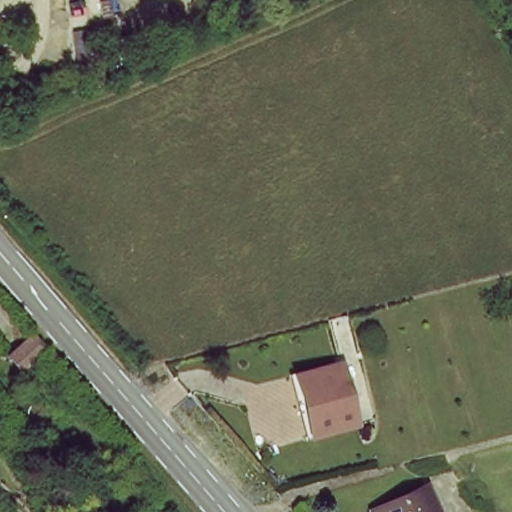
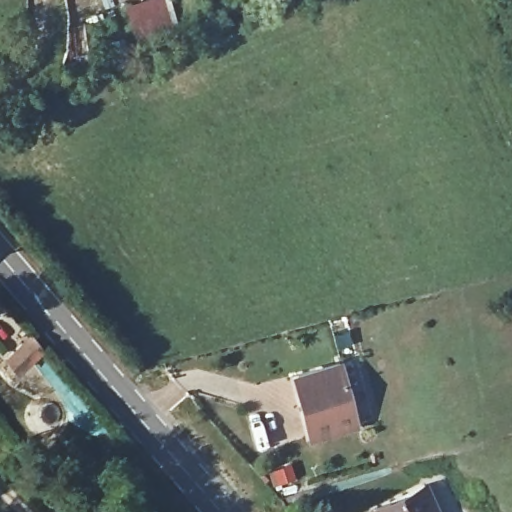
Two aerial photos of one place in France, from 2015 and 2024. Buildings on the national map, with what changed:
new [(137,41),(127,5),(144,0),(171,0),(180,28),(137,41)]
unchanged [(5,362),(31,340),(42,353),(16,375),(5,362)]
unchanged [(296,381),(337,369),(358,432),(317,443),(296,381)]
unchanged [(430,486),(441,512),(382,512),(380,508),(430,486)]

